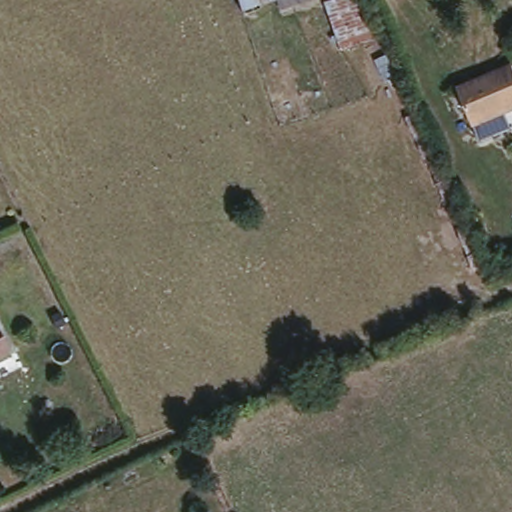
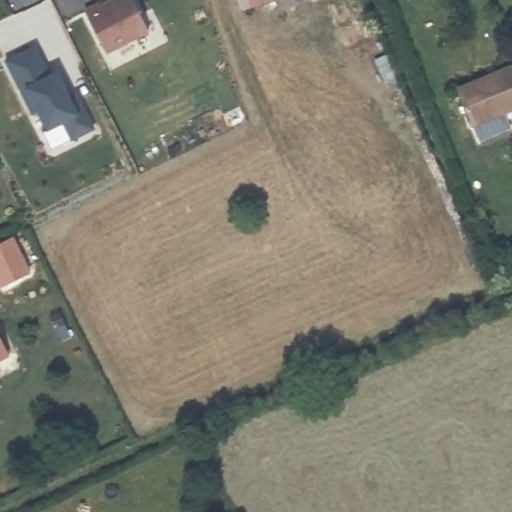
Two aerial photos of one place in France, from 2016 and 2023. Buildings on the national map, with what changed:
new [(105,53),(84,10),(101,2),(102,4),(111,0),(133,0),(149,32),(105,53)]
unchanged [(237,0),(247,0),(237,3),(237,0)]
unchanged [(326,2),(331,0),(357,0),(364,18),(371,35),(343,46),(326,2)]
new [(50,75),(59,71),(71,95),(78,92),(96,129),(72,142),(63,124),(47,131),(39,113),(31,117),(4,60),(35,45),(50,75)]
unchanged [(512,64),(512,107),(472,123),(458,85),(512,64)]
unchanged [(0,357),(0,342),(6,354),(0,357)]

